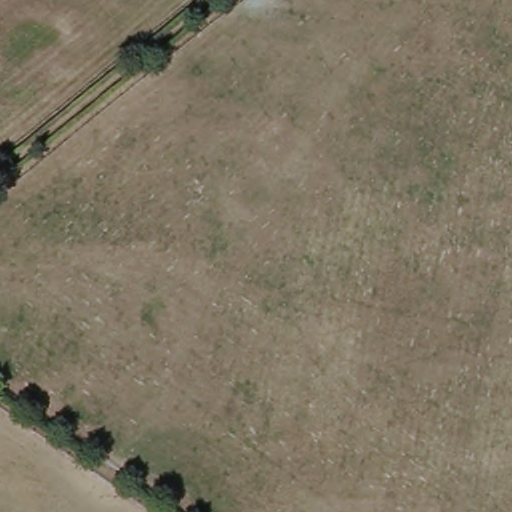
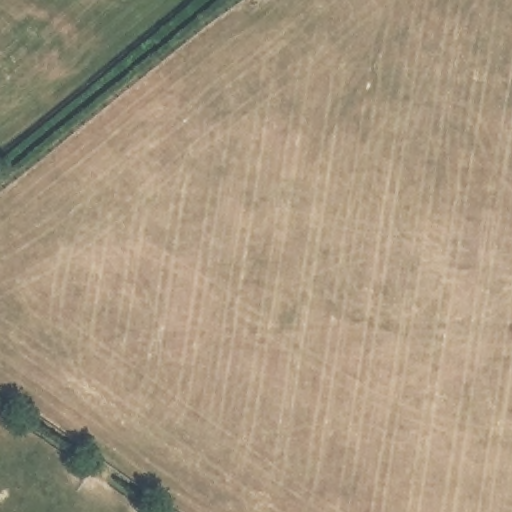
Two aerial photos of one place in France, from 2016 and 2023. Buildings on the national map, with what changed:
[]

